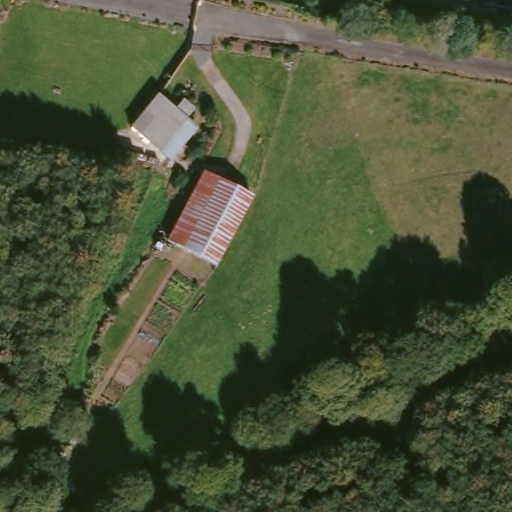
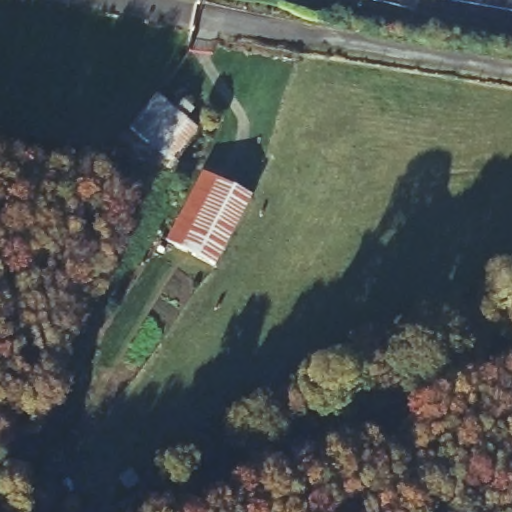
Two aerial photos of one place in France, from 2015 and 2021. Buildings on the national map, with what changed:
unchanged [(181,103),(190,110),(184,118),(196,129),(170,161),(132,131),(157,98),(175,111),(181,103)]
unchanged [(169,238),(202,170),(250,195),(216,263),(169,238)]

